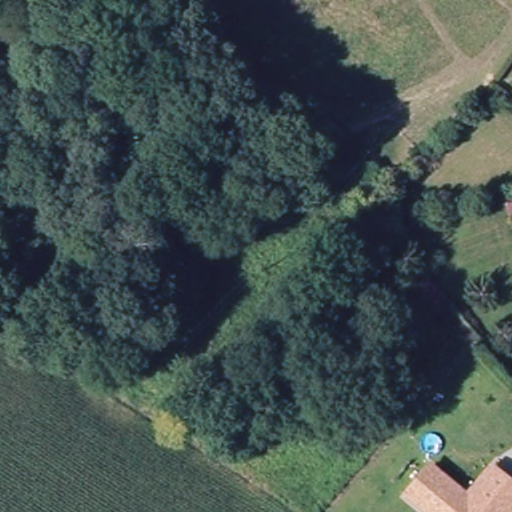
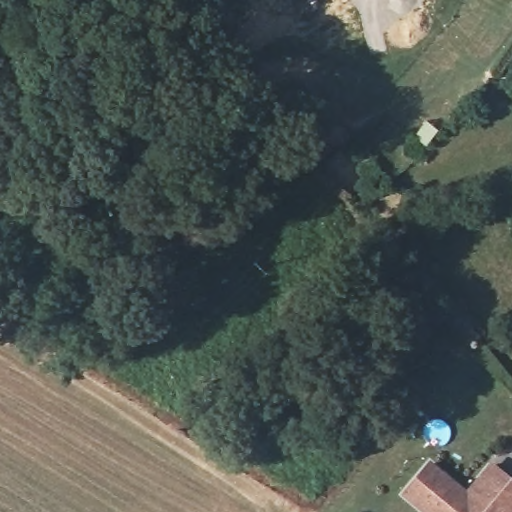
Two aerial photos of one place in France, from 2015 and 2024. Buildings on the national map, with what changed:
unchanged [(428,461),(464,492),(489,462),(506,476),(512,481),(512,509),(509,512),(429,512),(403,490),(428,461)]

